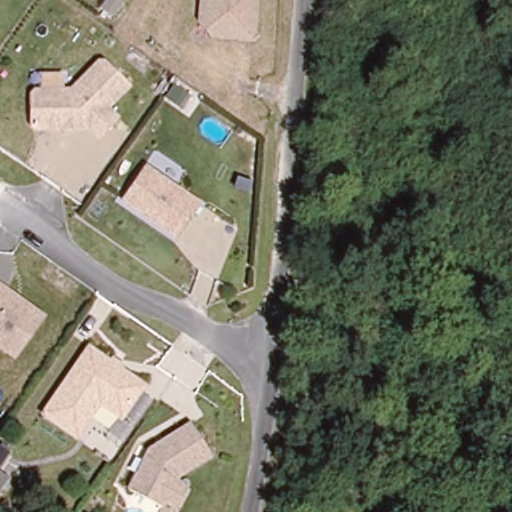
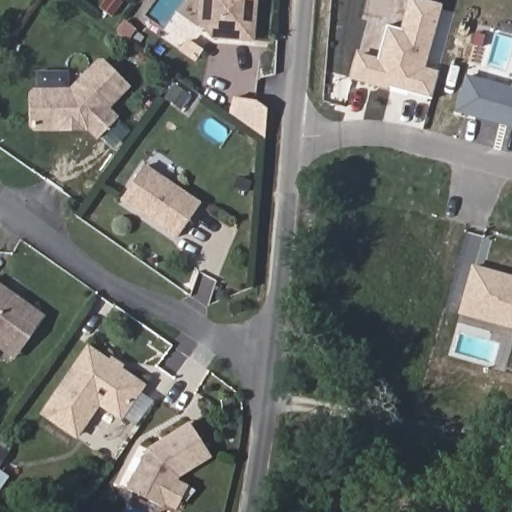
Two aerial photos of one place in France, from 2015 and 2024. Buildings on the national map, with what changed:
unchanged [(212,37),(198,21),(200,0),(256,0),(252,41),(212,37)]
new [(388,90),(349,80),(356,52),(378,58),(387,25),(401,29),(407,0),(425,0),(443,5),(425,67),(439,72),(431,100),(389,87),(388,90)]
unchanged [(129,15),(118,29),(105,20),(116,6),(129,15)]
unchanged [(35,127),(30,122),(29,94),(34,89),(70,87),(96,59),(103,59),(128,82),(106,105),(118,115),(99,136),(89,126),(35,127)]
new [(465,75),(511,87),(512,82),(512,128),(454,112),(465,75)]
unchanged [(194,110),(185,122),(170,112),(179,99),(194,110)]
unchanged [(198,202),(175,235),(121,197),(143,165),(198,202)]
new [(471,265),(512,276),(512,329),(458,313),(471,265)]
unchanged [(0,347),(0,286),(44,317),(22,347),(15,358),(6,352),(0,347)]
unchanged [(85,346),(140,385),(118,417),(96,402),(73,435),(40,411),(85,346)]
unchanged [(173,503),(163,497),(158,507),(124,488),(144,448),(187,422),(208,455),(174,476),(174,477),(184,482),(173,503)]

